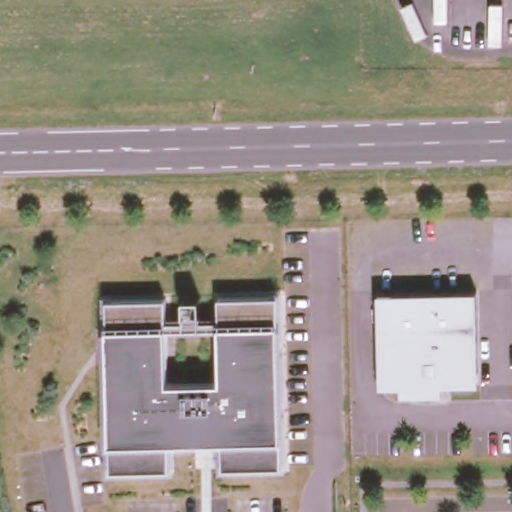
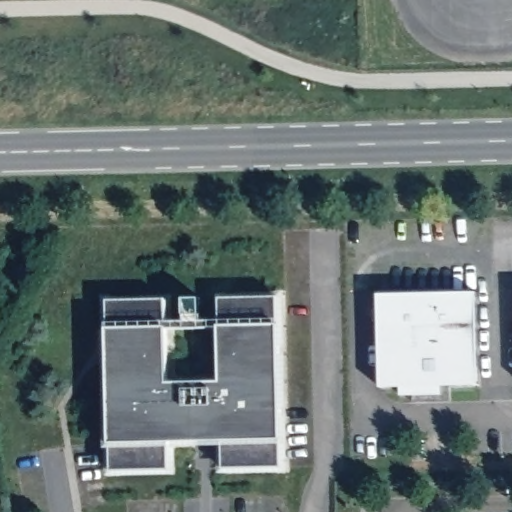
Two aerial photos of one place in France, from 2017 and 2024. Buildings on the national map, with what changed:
unchanged [(477,293),(480,386),(444,387),(444,397),(403,398),(402,388),(380,388),(380,295),(477,293)]
unchanged [(165,300),(167,320),(184,320),(184,300),(200,301),(201,322),(222,321),(220,298),(282,297),(285,468),(223,470),(222,443),(173,445),(172,473),(109,475),(105,301),(165,300)]

